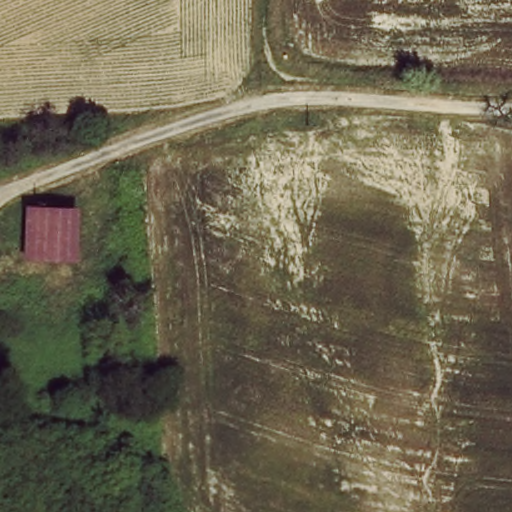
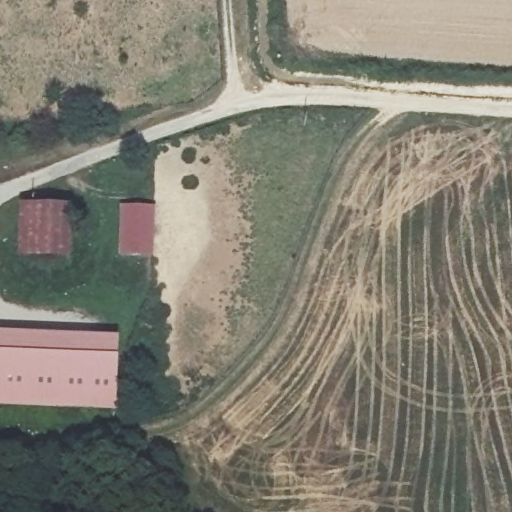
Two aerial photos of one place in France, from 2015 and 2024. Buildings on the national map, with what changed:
unchanged [(78,207),(71,265),(20,258),(24,205),(78,207)]
new [(156,209),(154,260),(118,259),(119,207),(156,209)]
new [(0,405),(0,334),(118,340),(113,410),(0,405)]

